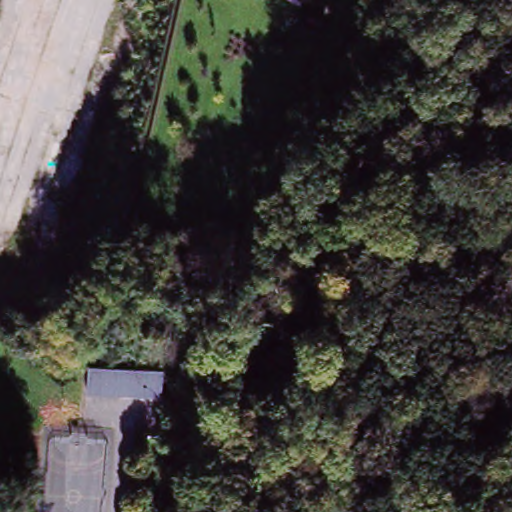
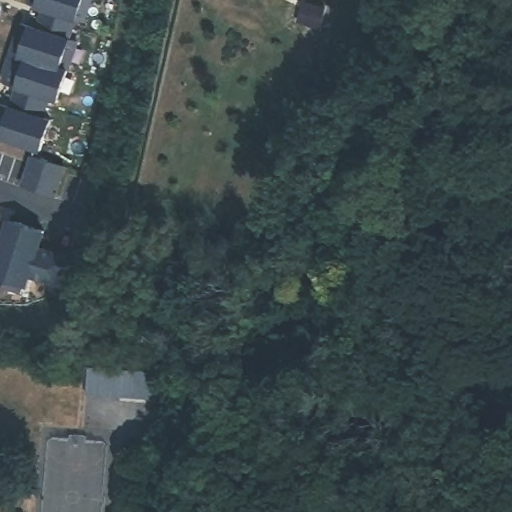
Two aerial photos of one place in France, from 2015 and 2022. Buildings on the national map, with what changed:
new [(0,104),(9,106),(17,84),(2,79),(20,25),(34,29),(42,6),(28,2),(29,0),(91,0),(84,22),(75,20),(67,42),(75,43),(56,99),(50,97),(42,119),(50,119),(38,150),(0,137),(0,104)]
new [(30,158),(63,168),(53,196),(22,186),(30,158)]
new [(9,222),(42,231),(39,245),(70,254),(61,283),(28,272),(24,290),(5,284),(8,276),(0,274),(0,241),(3,241),(9,222)]
unchanged [(162,401),(118,398),(88,397),(91,369),(165,375),(162,401)]

